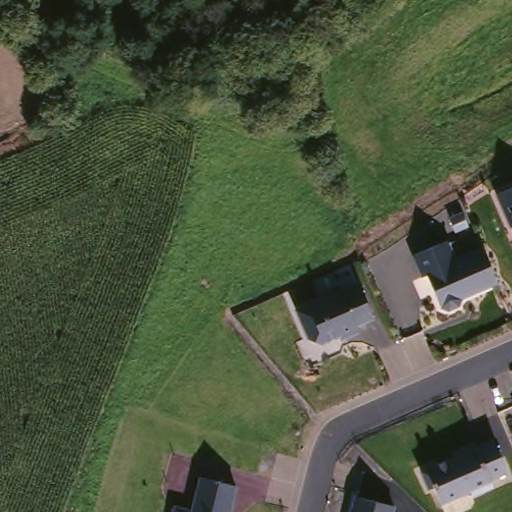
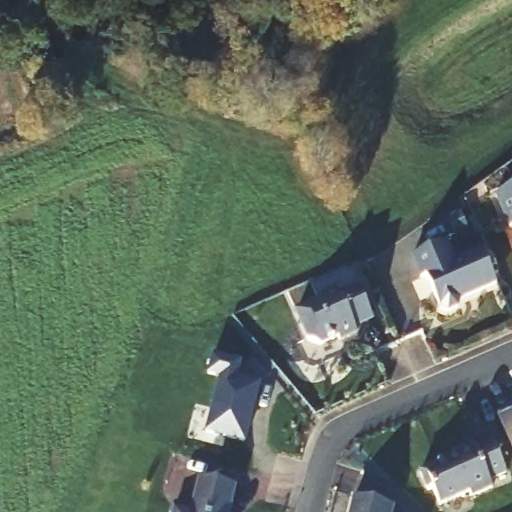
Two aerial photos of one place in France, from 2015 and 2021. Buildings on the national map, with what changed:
unchanged [(498,197),(512,191),(512,229),(498,197)]
unchanged [(499,280),(464,296),(461,304),(451,308),(443,305),(429,273),(424,275),(414,253),(449,238),(458,257),(484,246),(499,280)]
unchanged [(376,320),(357,328),(359,333),(342,341),(341,339),(323,347),(312,342),(299,314),(326,303),(324,299),(341,291),(343,296),(362,288),(376,320)]
new [(207,432),(222,377),(209,373),(214,357),(240,364),(236,381),(259,387),(244,441),(207,432)]
unchanged [(508,474),(491,481),(494,488),(473,497),(471,492),(441,505),(434,489),(429,491),(422,473),(456,458),(454,454),(474,445),(477,449),(494,442),(508,474)]
unchanged [(194,512),(202,478),(238,487),(231,512),(194,512)]
unchanged [(394,506),(392,512),(349,512),(353,497),(394,506)]
unchanged [(194,512),(175,512),(177,508),(194,512)]

